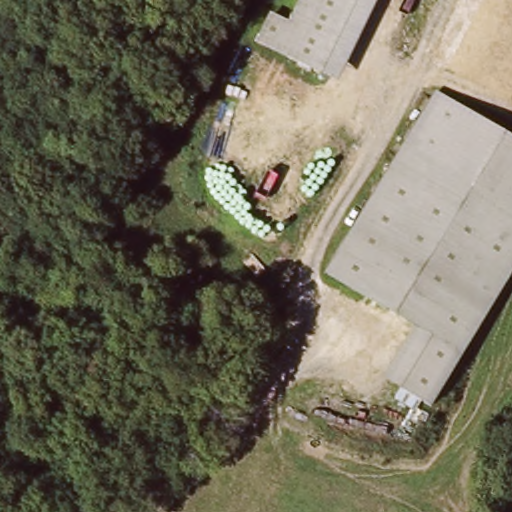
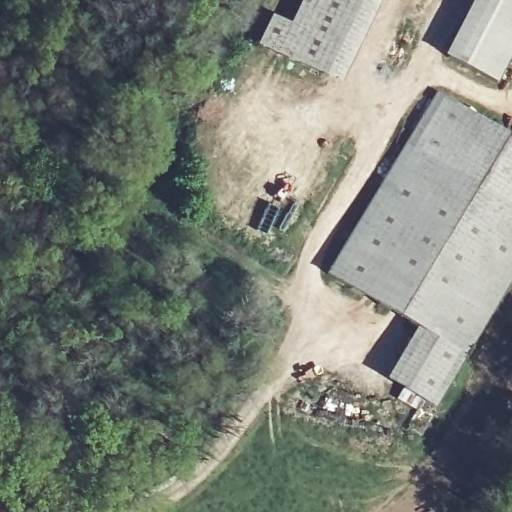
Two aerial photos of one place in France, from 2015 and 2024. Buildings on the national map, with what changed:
unchanged [(291,24),(303,0),(381,0),(339,86),(257,45),(271,15),(291,24)]
new [(443,56),(473,0),(512,0),(512,55),(497,84),(443,56)]
unchanged [(440,93),(512,138),(512,209),(407,145),(431,107),(440,93)]
unchanged [(432,336),(328,271),(407,145),(512,209),(512,276),(462,355),(432,336)]
unchanged [(431,405),(401,386),(432,336),(462,355),(431,405)]

